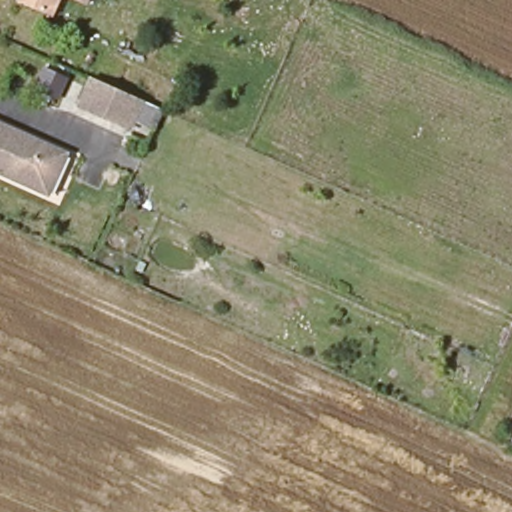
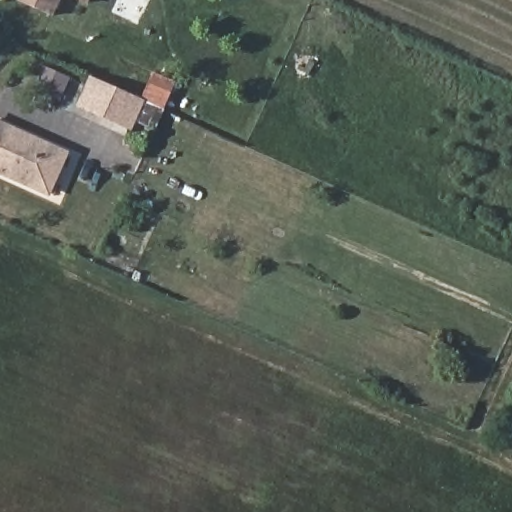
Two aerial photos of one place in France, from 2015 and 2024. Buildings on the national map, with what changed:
unchanged [(48,11),(26,0),(53,0),(48,11)]
unchanged [(142,97),(131,126),(81,104),(93,75),(142,97)]
unchanged [(0,167),(0,120),(32,135),(32,136),(65,151),(45,188),(0,167)]

